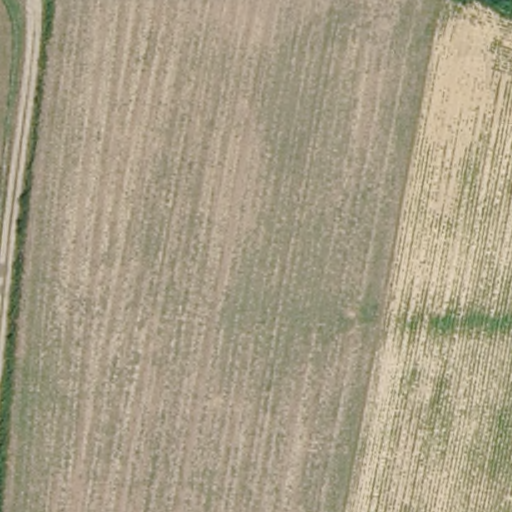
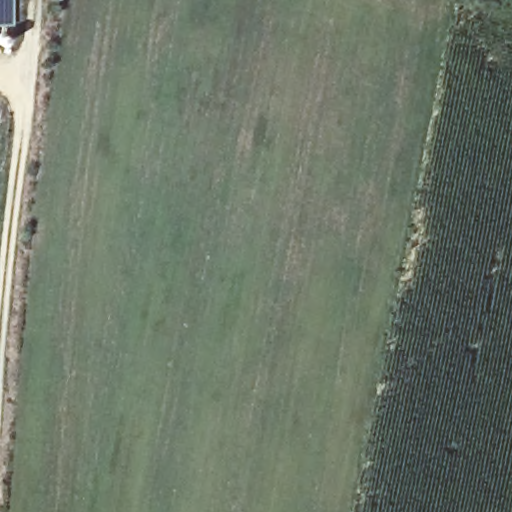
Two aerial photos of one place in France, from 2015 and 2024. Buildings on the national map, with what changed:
new [(0,25),(0,0),(15,0),(15,25),(0,25)]

